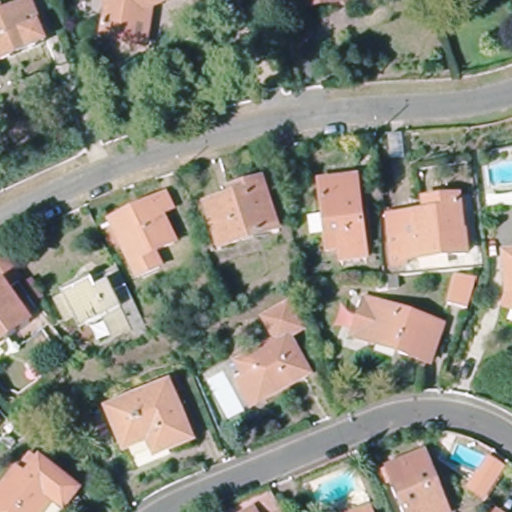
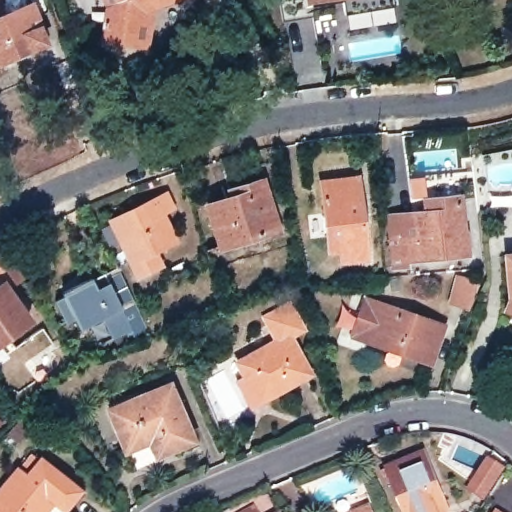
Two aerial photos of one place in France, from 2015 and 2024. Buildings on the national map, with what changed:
unchanged [(110,35),(111,25),(108,25),(109,19),(111,20),(116,3),(114,0),(171,0),(158,5),(153,41),(144,40),(110,35)]
unchanged [(310,5),(309,0),(348,0),(329,2),(310,5)]
unchanged [(41,39),(0,57),(0,14),(26,3),(41,39)]
unchanged [(345,254),(344,240),(331,242),(324,174),(360,171),(368,252),(345,254)]
unchanged [(223,244),(208,204),(232,195),(230,189),(262,179),(277,227),(223,244)]
unchanged [(158,197),(166,211),(154,217),(167,244),(147,255),(155,270),(132,282),(115,247),(118,245),(106,222),(158,197)]
unchanged [(453,204),(454,228),(458,228),(459,252),(411,256),(411,263),(400,263),(398,235),(409,234),(407,207),(453,204)]
unchanged [(0,286),(7,281),(0,271),(0,247),(1,246),(21,274),(9,283),(33,319),(0,342),(0,286)]
unchanged [(501,310),(504,304),(500,257),(512,256),(512,315),(501,310)]
unchanged [(133,323),(103,338),(92,314),(66,327),(63,321),(51,326),(40,301),(89,276),(96,292),(112,285),(133,323)]
unchanged [(473,283),(463,311),(444,304),(453,277),(473,283)]
unchanged [(427,364),(351,336),(364,299),(441,326),(427,364)]
unchanged [(240,380),(247,374),(240,360),(277,337),(265,317),(288,303),(302,325),(288,334),(312,373),(291,385),(255,407),(240,380)]
unchanged [(7,403),(0,393),(0,372),(5,369),(21,393),(7,403)]
unchanged [(142,435),(116,445),(101,406),(158,383),(181,436),(159,445),(148,450),(142,435)]
unchanged [(416,453),(440,512),(403,512),(384,466),(416,453)]
unchanged [(61,504),(51,497),(41,512),(0,512),(0,485),(14,466),(23,472),(35,456),(75,484),(61,504)]
unchanged [(505,471),(484,504),(468,493),(488,459),(505,471)]
unchanged [(376,512),(341,512),(373,501),(376,512)]
unchanged [(267,511),(267,512),(266,512),(267,511)]

